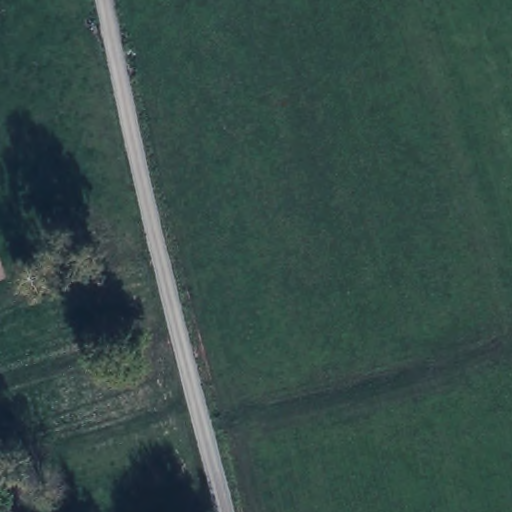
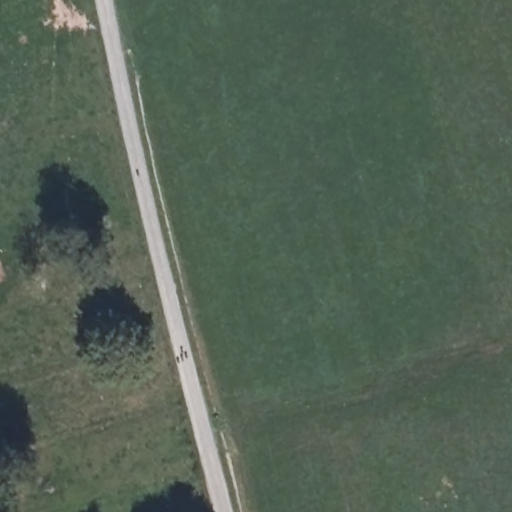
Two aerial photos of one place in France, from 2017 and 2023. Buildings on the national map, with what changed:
unchanged [(0,281),(0,256),(7,279),(0,281)]

